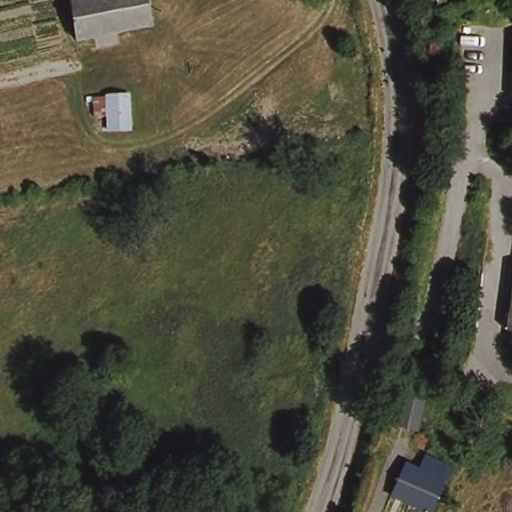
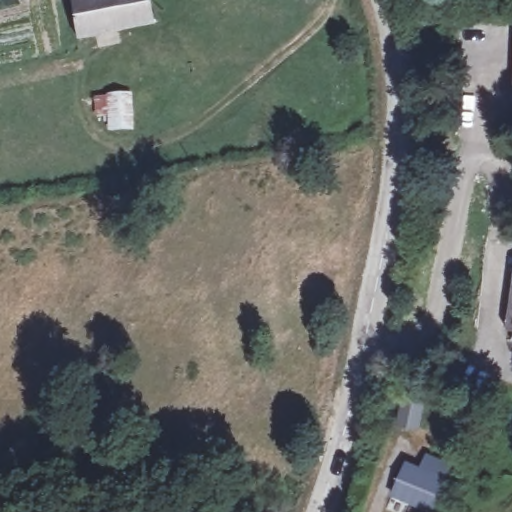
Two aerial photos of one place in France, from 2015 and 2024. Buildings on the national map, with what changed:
unchanged [(80,42),(67,0),(149,0),(155,22),(80,42)]
unchanged [(124,98),(129,136),(112,139),(109,120),(95,123),(94,104),(94,103),(124,98)]
unchanged [(512,318),(512,336),(510,336),(512,318)]
unchanged [(432,512),(423,512),(412,504),(385,499),(404,463),(427,454),(456,467),(432,512)]

